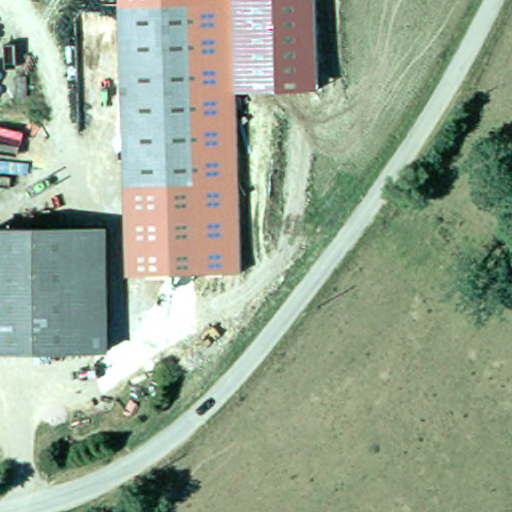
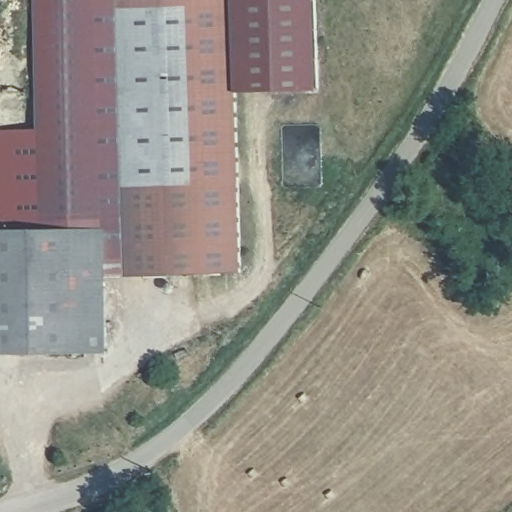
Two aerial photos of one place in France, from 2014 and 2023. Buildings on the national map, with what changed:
new [(118,0),(118,12),(123,12),(133,190),(123,190),(123,228),(104,229),(37,230),(32,0),(118,0)]
unchanged [(118,0),(233,0),(236,91),(244,272),(126,274),(123,228),(123,190),(133,190),(198,186),(198,175),(189,9),(174,10),(132,11),(123,12),(118,12),(118,0)]
unchanged [(236,91),(233,0),(316,0),(319,89),(236,91)]
unchanged [(198,186),(133,190),(123,12),(189,9),(198,186)]
unchanged [(104,229),(108,349),(0,352),(0,231),(37,230),(104,229)]

